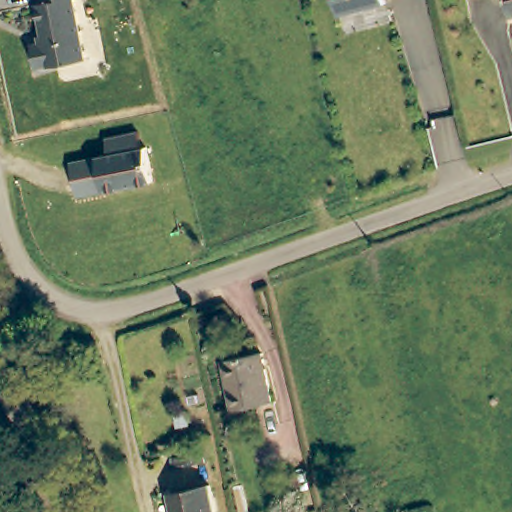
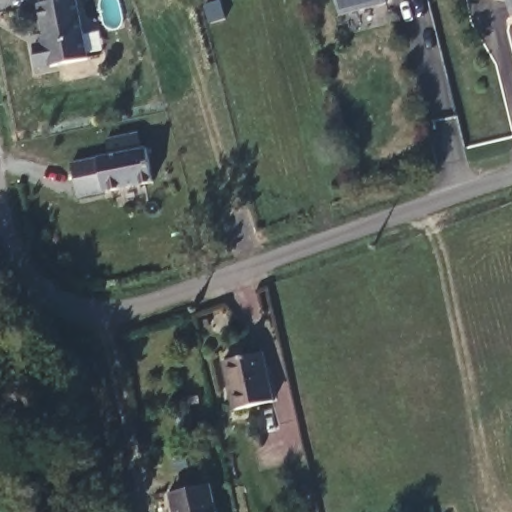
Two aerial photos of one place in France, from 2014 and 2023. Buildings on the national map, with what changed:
unchanged [(41,2),(44,1),(43,0),(78,0),(86,39),(90,58),(55,65),(54,63),(42,66),(38,48),(37,44),(49,41),(41,2)]
unchanged [(336,10),(333,0),(379,0),(379,1),(336,10)]
unchanged [(512,0),(512,3),(511,0),(512,0)]
unchanged [(156,180),(82,195),(75,161),(114,154),(110,137),(141,131),(145,146),(149,146),(156,180)]
unchanged [(263,354),(275,401),(237,409),(226,363),(263,354)]
unchanged [(212,512),(172,512),(169,500),(207,490),(212,512)]

